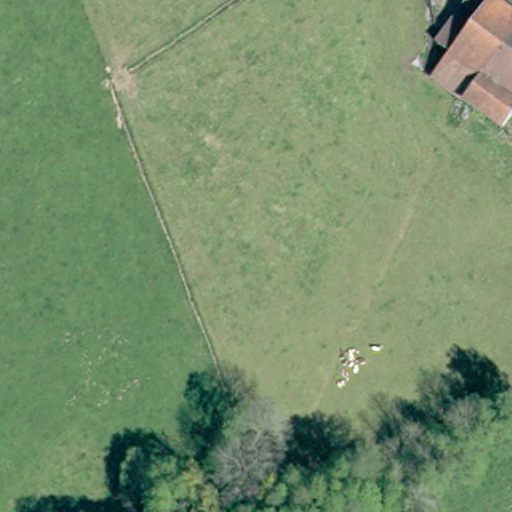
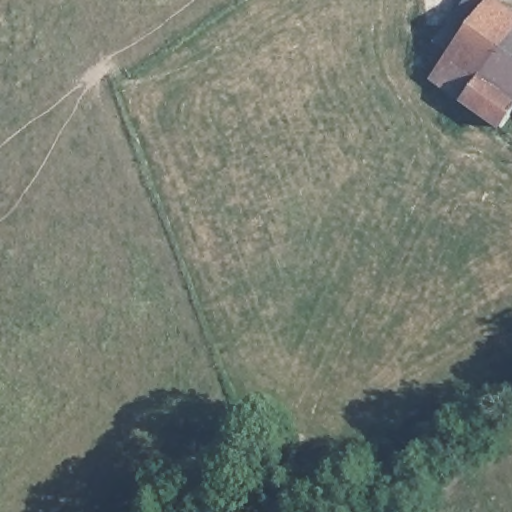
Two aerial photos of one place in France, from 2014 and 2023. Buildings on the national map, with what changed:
unchanged [(454,60),(447,55),(433,46),(468,0),(496,0),(454,60)]
unchanged [(502,127),(436,83),(434,75),(447,55),(454,60),(496,0),(497,0),(512,11),(512,118),(510,117),(502,127)]

